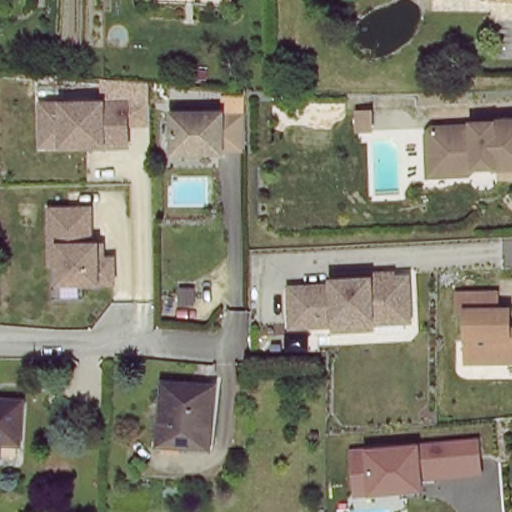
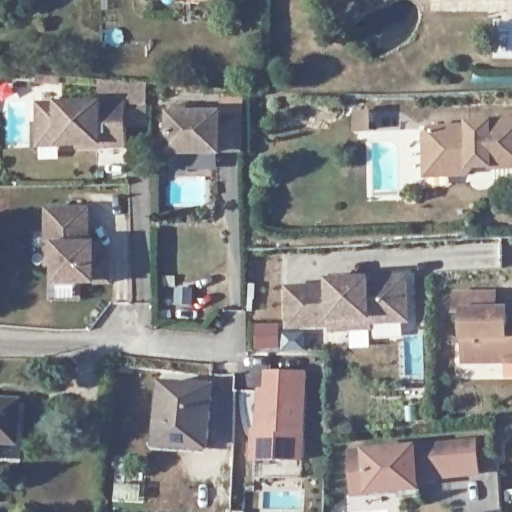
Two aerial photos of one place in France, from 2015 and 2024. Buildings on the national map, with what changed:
unchanged [(100,150),(60,150),(37,150),(38,103),(58,102),(103,102),(126,101),(128,150),(100,150)]
unchanged [(222,114),(223,154),(172,154),(171,114),(222,114)]
unchanged [(512,167),(505,167),(506,152),(506,140),(506,120),(512,119),(512,167)]
unchanged [(506,140),(506,152),(505,167),(494,169),(494,166),(475,166),(475,169),(469,173),(466,174),(427,175),(426,133),(432,127),(472,125),(472,123),(491,122),(491,121),(506,120),(506,140)]
unchanged [(57,288),(56,269),(45,268),(45,209),(89,208),(89,244),(100,244),(100,257),(115,256),(115,286),(57,288)]
unchanged [(333,332),(332,326),(290,328),(288,290),(331,287),(330,282),(406,278),(408,322),(371,324),(371,330),(333,332)]
unchanged [(496,312),(499,312),(508,312),(508,332),(512,332),(512,363),(465,363),(465,351),(465,313),(456,313),(456,297),(495,296),(496,312)]
new [(302,371),(299,460),(251,459),(252,430),(257,430),(258,387),(265,388),(265,371),(302,371)]
unchanged [(183,444),(183,438),(154,436),(157,380),(209,383),(206,445),(183,444)]
unchanged [(21,402),(19,443),(0,443),(0,400),(21,402)]
unchanged [(346,452),(366,450),(419,445),(477,440),(479,478),(418,485),(419,493),(367,496),(350,497),(346,452)]

